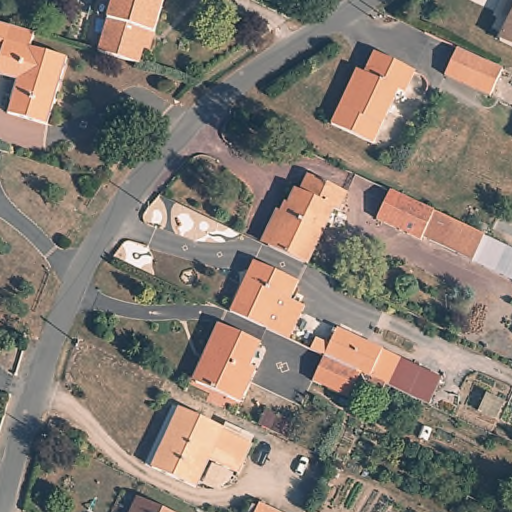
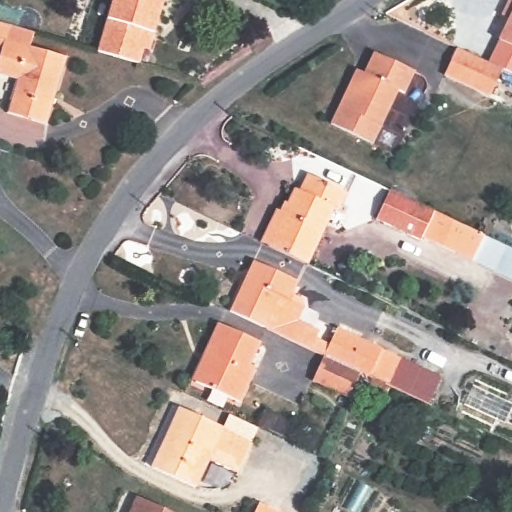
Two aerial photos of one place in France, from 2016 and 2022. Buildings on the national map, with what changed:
unchanged [(143,64),(99,51),(115,0),(165,0),(162,8),(165,8),(156,41),(149,39),(143,64)]
unchanged [(506,13),(499,9),(505,0),(512,0),(512,49),(492,36),(506,13)]
unchanged [(7,35),(2,51),(0,50),(0,24),(34,34),(30,43),(7,35)]
unchanged [(67,56),(46,119),(8,107),(19,74),(0,67),(0,57),(7,35),(67,56)]
unchanged [(490,95),(446,70),(461,41),(504,66),(490,95)]
unchanged [(357,75),(364,80),(380,53),(414,73),(401,94),(396,91),(367,139),(331,119),(357,75)]
unchanged [(294,186),(298,188),(308,172),(347,193),(338,210),(333,207),(302,262),(264,241),(294,186)]
unchanged [(476,259),(429,235),(428,237),(385,214),(399,186),(489,235),(476,259)]
unchanged [(489,235),(512,247),(512,277),(476,259),(489,235)]
unchanged [(288,338),(271,329),(231,307),(256,263),(298,285),(290,297),(307,307),(288,338)]
unchanged [(262,340),(250,366),(260,371),(242,403),(199,379),(211,359),(205,355),(222,321),(262,340)]
unchanged [(388,382),(369,372),(331,351),(316,343),(321,334),(335,341),(343,326),(402,359),(388,382)]
unchanged [(357,394),(321,374),(331,351),(369,372),(357,394)]
unchanged [(183,402),(222,421),(220,426),(244,439),(234,461),(207,449),(191,485),(152,465),(183,402)]
unchanged [(139,496),(170,512),(131,512),(139,496)]
unchanged [(260,505),(275,512),(257,512),(260,505)]

